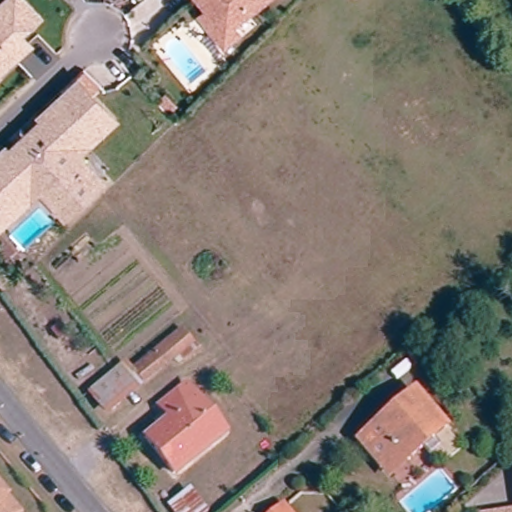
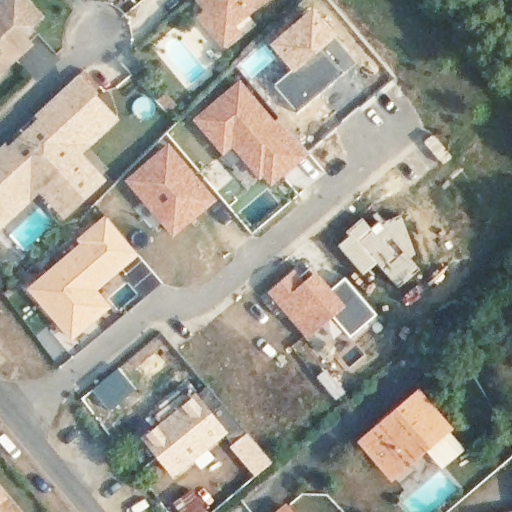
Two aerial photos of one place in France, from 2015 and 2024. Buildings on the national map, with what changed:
unchanged [(40,7),(21,25),(30,35),(0,63),(0,0),(34,0),(40,7)]
unchanged [(201,16),(209,10),(201,0),(266,0),(233,27),(239,34),(225,45),(201,16)]
new [(313,5),(337,35),(291,70),(268,42),(313,5)]
new [(291,70),(337,35),(358,62),(296,113),(272,84),(291,70)]
new [(240,78),(266,108),(310,154),(269,189),(231,149),(222,156),(191,119),(240,78)]
unchanged [(0,174),(71,107),(60,96),(74,84),(101,113),(112,124),(75,159),(97,183),(65,213),(42,189),(1,228),(0,226),(0,174)]
new [(169,140),(201,176),(218,162),(233,178),(213,193),(218,199),(172,239),(123,180),(169,140)]
new [(77,243),(74,239),(105,213),(139,254),(98,289),(111,305),(70,341),(25,287),(77,243)]
new [(346,230),(362,216),(374,230),(382,223),(401,215),(416,253),(411,258),(420,268),(397,288),(377,263),(363,275),(336,244),(349,233),(346,230)]
new [(295,268),(304,279),(316,269),(331,286),(345,275),(378,314),(350,339),(332,319),(308,340),(266,291),(295,268)]
new [(46,326),(66,351),(54,361),(34,335),(46,326)]
demolished [(174,360),(146,384),(139,377),(135,380),(130,373),(170,340),(182,354),(174,360)]
unchanged [(92,391),(118,369),(127,362),(134,370),(130,373),(135,380),(139,377),(146,384),(136,391),(111,413),(92,391)]
unchanged [(174,475),(145,439),(170,419),(160,407),(186,387),(224,434),(174,475)]
unchanged [(380,460),(360,437),(413,389),(443,424),(430,436),(420,444),(403,459),(389,471),(380,460)]
unchanged [(509,458),(512,458),(512,472),(509,458)]
unchanged [(208,512),(173,512),(168,505),(191,488),(208,512)]
unchanged [(14,512),(0,512),(0,492),(14,510),(14,512)]
unchanged [(291,512),(272,512),(283,502),(291,512)]

